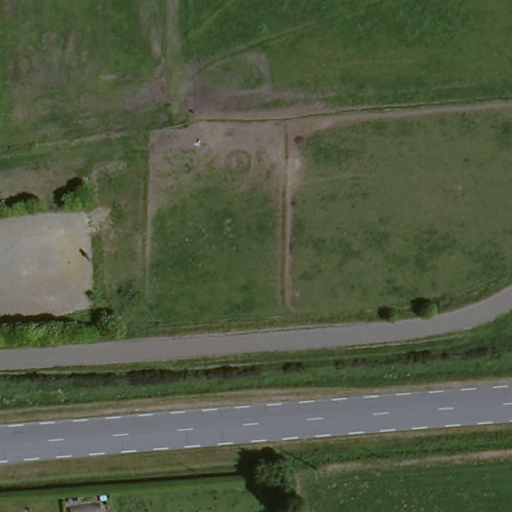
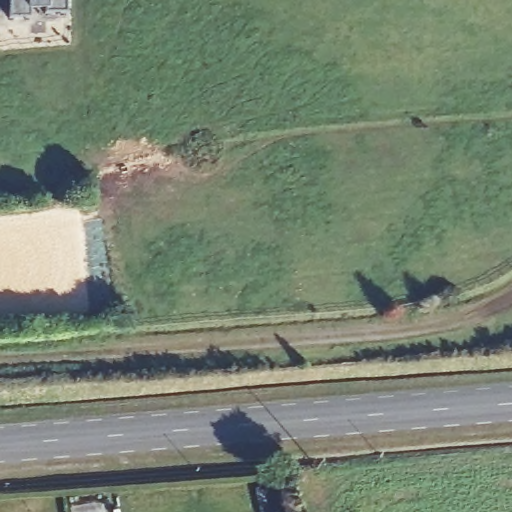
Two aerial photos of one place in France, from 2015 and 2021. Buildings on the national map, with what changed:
new [(64,11),(48,10),(30,11),(31,16),(11,16),(10,0),(64,0),(64,11)]

